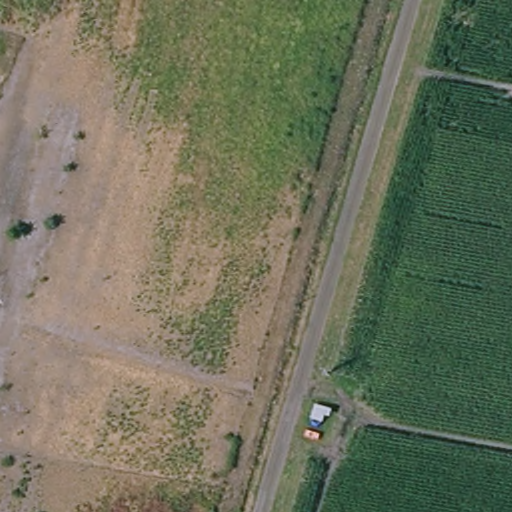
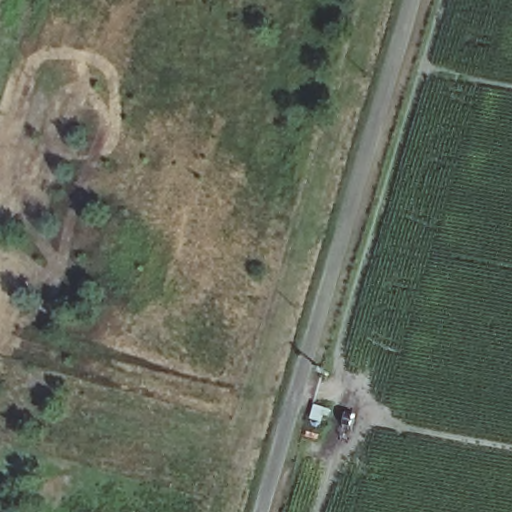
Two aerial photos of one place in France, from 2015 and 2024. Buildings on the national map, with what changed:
unchanged [(6,123),(0,142),(0,122),(6,123)]

